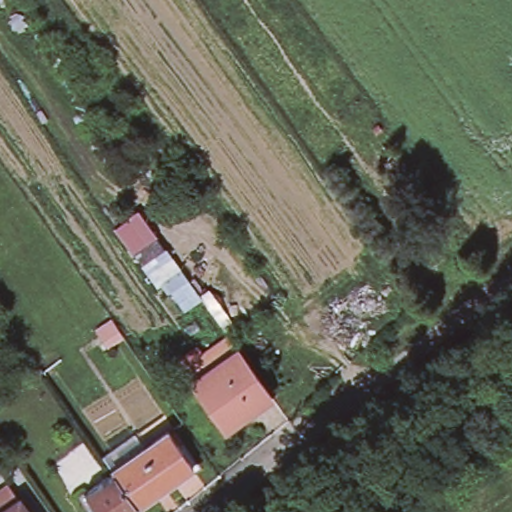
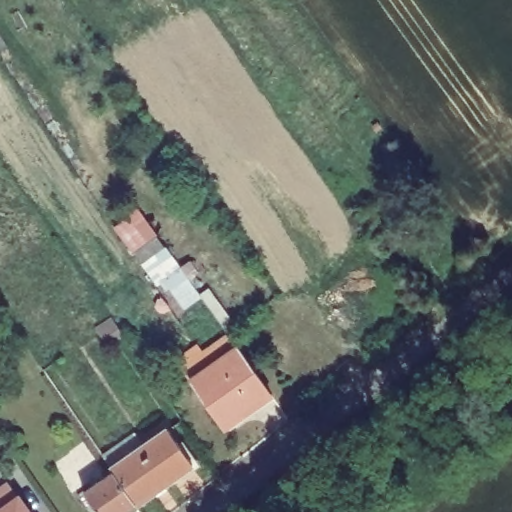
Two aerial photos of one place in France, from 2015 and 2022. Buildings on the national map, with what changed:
unchanged [(211,312),(195,323),(163,279),(178,267),(211,312)]
unchanged [(110,320),(125,338),(106,352),(93,333),(110,320)]
unchanged [(227,433),(194,387),(185,373),(232,340),(241,353),(275,399),(227,433)]
unchanged [(201,464),(145,503),(121,472),(120,468),(111,456),(144,434),(152,446),(177,428),(201,464)]
unchanged [(85,495),(91,490),(93,492),(121,472),(145,503),(132,512),(107,512),(105,508),(99,512),(98,512),(85,495)]
unchanged [(11,483),(22,498),(32,512),(0,512),(0,492),(11,483)]

